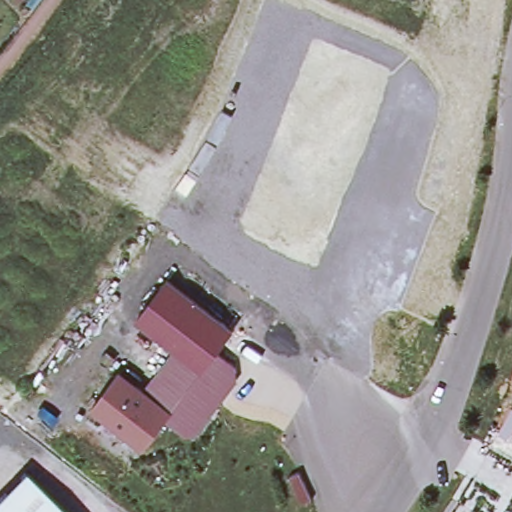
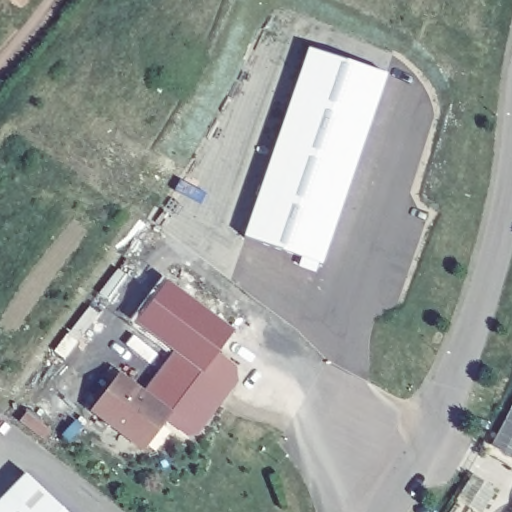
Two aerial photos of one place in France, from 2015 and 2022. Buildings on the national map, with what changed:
new [(313,47),(389,74),(323,264),(320,263),(317,271),(302,266),(305,258),(247,237),(313,47)]
unchanged [(90,412),(117,376),(142,395),(174,353),(134,323),(165,283),(231,333),(215,355),(232,367),(232,377),(203,416),(207,418),(194,436),(185,437),(172,427),(176,422),(167,417),(142,452),(90,412)]
unchanged [(512,409),(512,453),(493,442),(512,409)]
unchanged [(72,512),(0,512),(0,501),(30,471),(72,512)]

